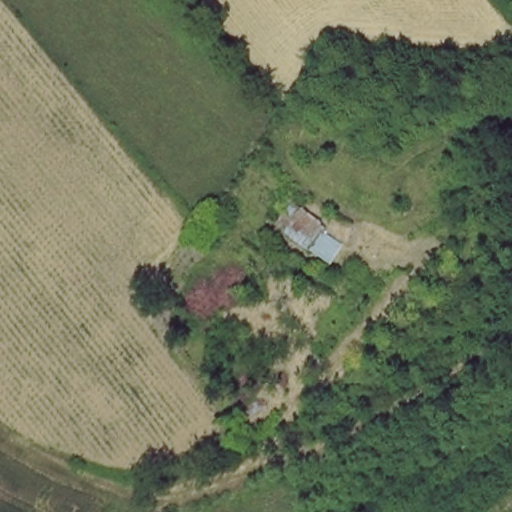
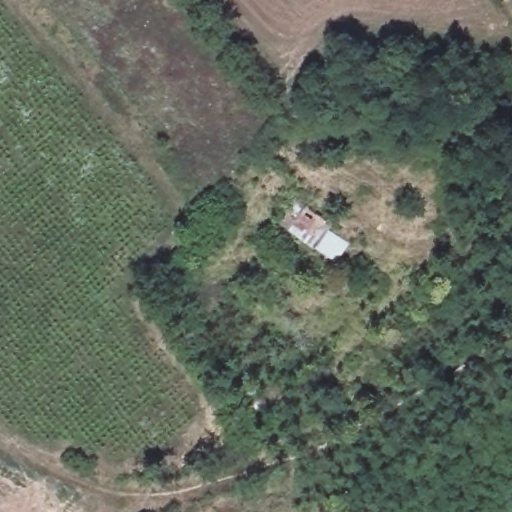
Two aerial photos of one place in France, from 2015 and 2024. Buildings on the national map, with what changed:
unchanged [(277,230),(298,201),(332,224),(328,234),(350,249),(336,265),(277,230)]

